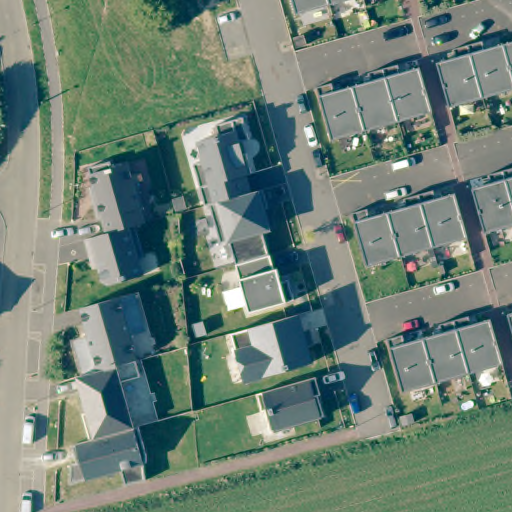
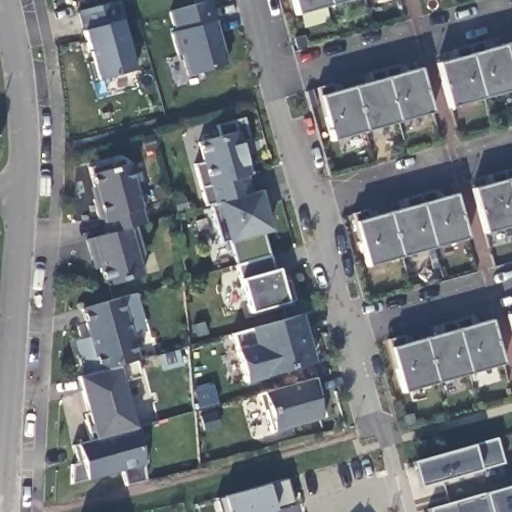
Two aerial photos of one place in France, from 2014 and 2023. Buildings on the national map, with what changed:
new [(121,19),(134,71),(94,82),(81,31),(85,30),(79,11),(116,0),(118,0),(121,19)]
new [(186,78),(181,56),(177,57),(170,32),(175,30),(169,12),(206,0),(210,0),(227,65),(186,78)]
unchanged [(331,6),(297,16),(292,0),(351,0),(331,6)]
unchanged [(456,59),(454,50),(469,46),(483,42),(485,50),(504,45),(512,42),(512,91),(484,99),(450,109),(437,64),(456,59)]
unchanged [(332,84),(335,92),(354,87),(372,82),(369,74),(398,66),(401,74),(421,69),(431,105),(433,113),(399,123),(366,132),(332,142),(317,88),(332,84)]
unchanged [(210,205),(205,206),(194,165),(203,164),(196,142),(220,137),(217,126),(242,119),(247,140),(241,142),(250,175),(245,176),(252,194),(210,205)]
unchanged [(111,163),(113,170),(129,165),(135,186),(137,185),(144,208),(141,209),(146,224),(135,227),(108,234),(104,219),(100,220),(94,201),(98,200),(90,169),(111,163)]
unchanged [(492,184),(489,176),(504,172),(512,169),(512,226),(485,234),(485,235),(477,205),(473,190),(492,184)]
unchanged [(221,244),(210,206),(210,205),(263,191),(269,209),(264,211),(267,221),(269,230),(263,232),(270,256),(236,265),(229,241),(221,244)]
unchanged [(355,213),(368,210),(370,218),(389,213),(407,208),(405,200),(420,195),(434,191),(436,200),(456,195),(468,239),(435,249),(402,258),(367,268),(353,214),(355,213)]
unchanged [(109,286),(104,283),(96,257),(91,258),(86,241),(86,240),(108,234),(135,227),(143,255),(140,263),(143,276),(109,286)]
unchanged [(236,266),(236,265),(270,256),(271,256),(275,270),(277,270),(281,283),(289,281),(294,301),(249,314),(236,266)]
unchanged [(85,376),(78,351),(92,347),(82,309),(135,295),(140,313),(146,333),(131,336),(138,361),(85,376)]
unchanged [(512,314),(512,330),(508,316),(512,314)]
unchanged [(248,330),(299,316),(313,362),(265,376),(264,378),(243,383),(236,350),(232,335),(248,330)]
unchanged [(404,336),(406,344),(424,339),(443,334),(441,325),(455,321),(470,317),(472,326),(491,320),(504,365),(470,375),(437,384),(403,393),(389,340),(404,336)]
unchanged [(139,377),(121,383),(134,428),(137,428),(145,457),(145,464),(141,466),(145,481),(126,486),(122,471),(86,480),(69,484),(70,466),(76,464),(71,446),(78,445),(90,441),(83,415),(88,414),(79,378),(85,376),(135,362),(139,377)]
unchanged [(264,394),(310,381),(315,379),(322,399),(321,403),(324,418),(320,420),(275,432),(271,432),(265,411),(262,411),(258,396),(264,394)]
new [(495,438),(502,464),(442,481),(418,488),(411,462),(435,455),(495,438)]
new [(295,505),(267,512),(220,512),(216,498),(288,478),(295,505)]
new [(430,512),(429,508),(453,501),(512,484),(512,512),(430,512)]

